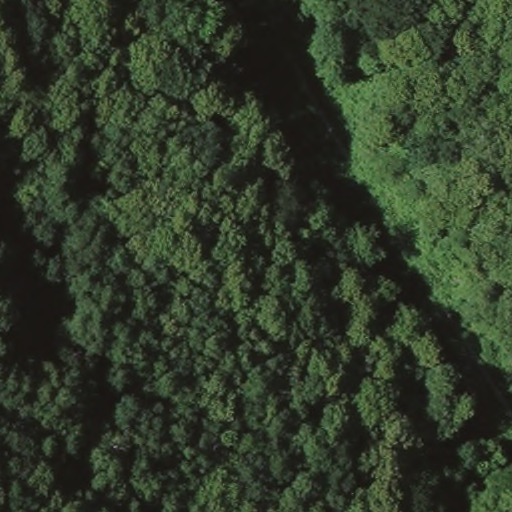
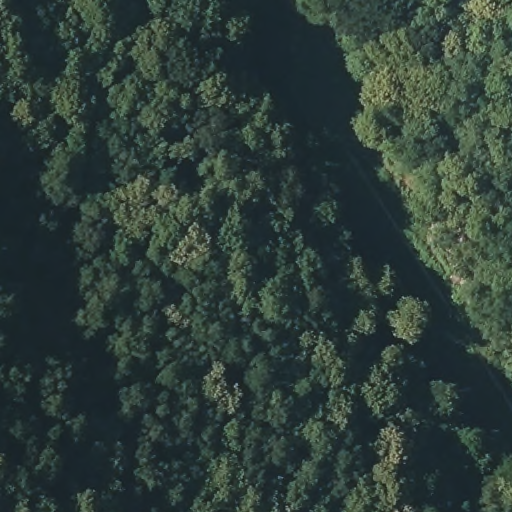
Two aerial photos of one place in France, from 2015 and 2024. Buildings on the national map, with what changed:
[]

